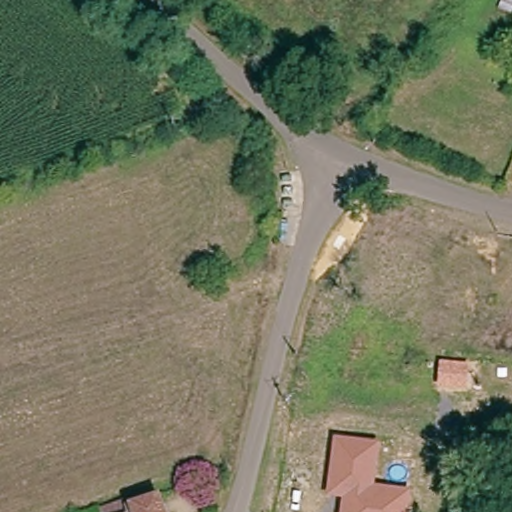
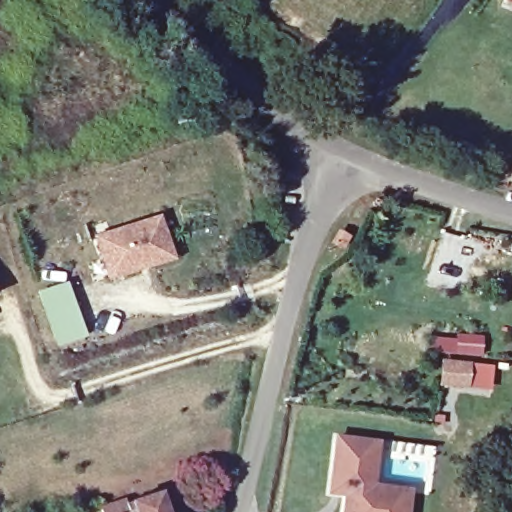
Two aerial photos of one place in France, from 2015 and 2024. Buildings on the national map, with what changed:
unchanged [(512,168),(512,183),(507,181),(512,168)]
new [(174,259),(108,279),(93,234),(160,214),(174,259)]
new [(66,280),(83,337),(55,346),(38,290),(66,280)]
unchanged [(436,386),(439,358),(468,361),(465,389),(436,386)]
unchanged [(325,494),(333,434),(380,441),(374,483),(411,489),(408,512),(339,512),(341,495),(325,494)]
unchanged [(131,500),(166,493),(171,512),(129,512),(134,511),(131,500)]

